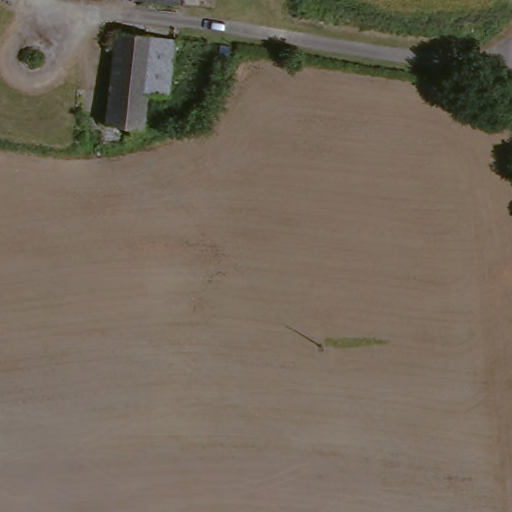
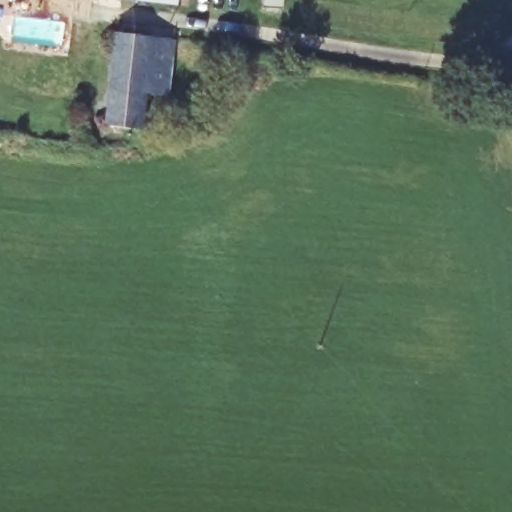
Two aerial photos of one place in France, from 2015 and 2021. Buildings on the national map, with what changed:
unchanged [(107,145),(109,131),(117,39),(120,39),(121,28),(149,31),(149,41),(176,44),(171,94),(171,99),(150,97),(147,134),(131,132),(130,146),(107,145)]

